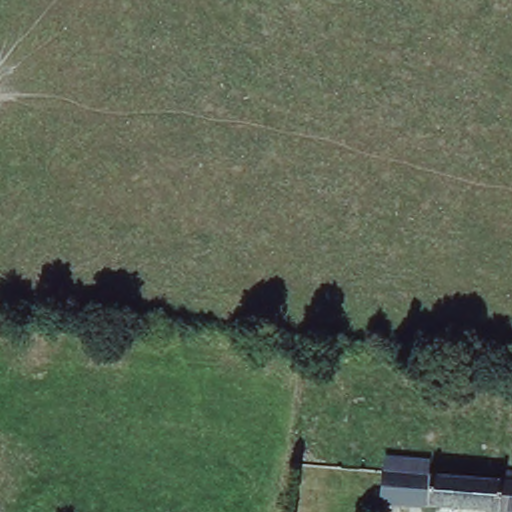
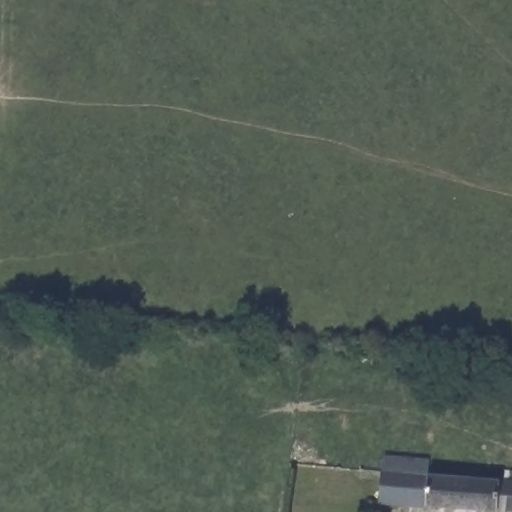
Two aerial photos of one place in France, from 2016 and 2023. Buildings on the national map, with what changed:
unchanged [(393,466),(394,453),(431,456),(430,470),(510,475),(511,466),(512,467),(512,508),(386,497),(389,466),(393,466)]

